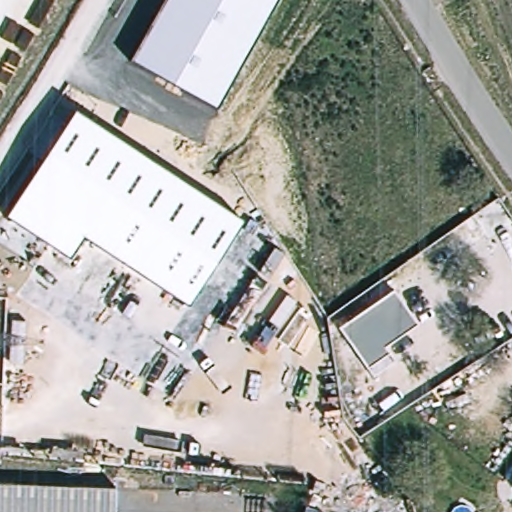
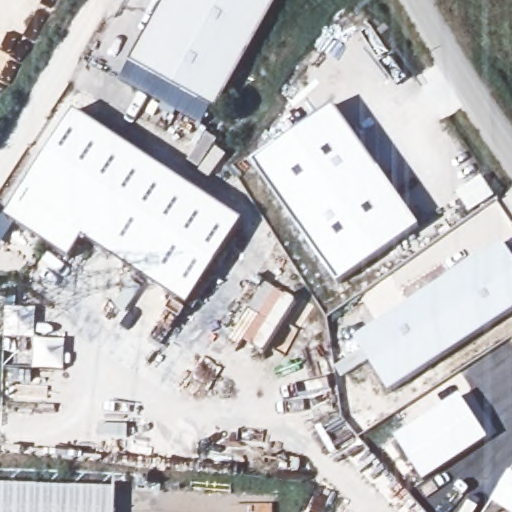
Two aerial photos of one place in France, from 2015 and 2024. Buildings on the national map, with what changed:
unchanged [(218,110),(132,60),(166,0),(277,0),(218,110)]
new [(252,162),(333,106),(418,226),(337,282),(252,162)]
unchanged [(69,257),(8,217),(76,113),(243,220),(189,305),(83,236),(69,257)]
new [(502,244),(512,258),(512,315),(390,395),(355,340),(502,244)]
new [(459,395),(489,439),(424,482),(395,438),(459,395)]
unchanged [(118,512),(0,512),(0,487),(118,490),(118,512)]

